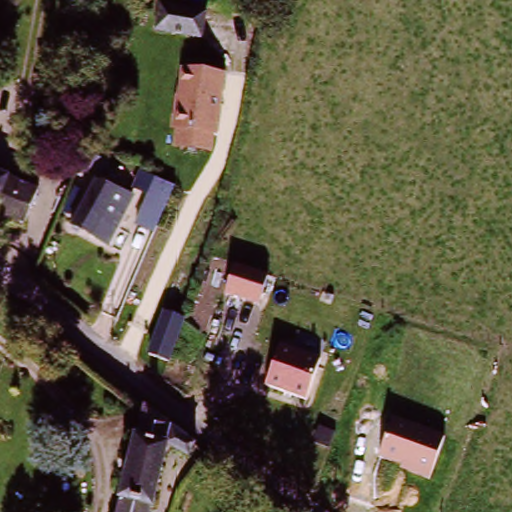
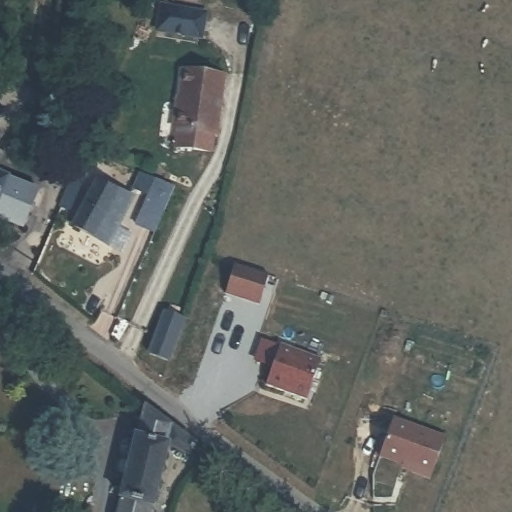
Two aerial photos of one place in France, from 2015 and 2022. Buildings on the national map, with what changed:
unchanged [(158,37),(161,13),(204,18),(200,42),(158,37)]
unchanged [(187,69),(228,76),(219,135),(177,128),(187,69)]
unchanged [(72,160),(79,146),(87,149),(80,164),(72,160)]
unchanged [(35,193),(20,229),(0,221),(0,179),(35,193)]
unchanged [(77,229),(87,207),(97,182),(135,201),(110,250),(77,229)]
unchanged [(137,230),(147,201),(153,183),(170,190),(165,207),(154,236),(137,230)]
unchanged [(235,263),(269,274),(260,306),(226,294),(235,263)]
unchanged [(182,321),(167,361),(149,354),(164,315),(182,321)]
unchanged [(318,361),(305,401),(266,388),(280,344),(318,361)]
unchanged [(144,512),(111,512),(140,407),(192,444),(184,458),(165,449),(162,457),(149,509),(145,509),(144,512)]
unchanged [(429,480),(380,461),(393,418),(444,437),(429,480)]

